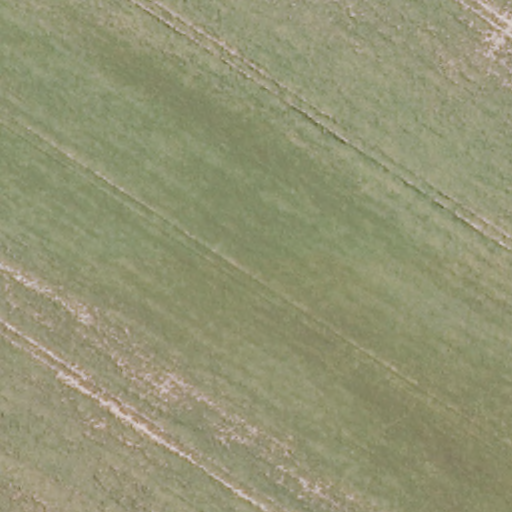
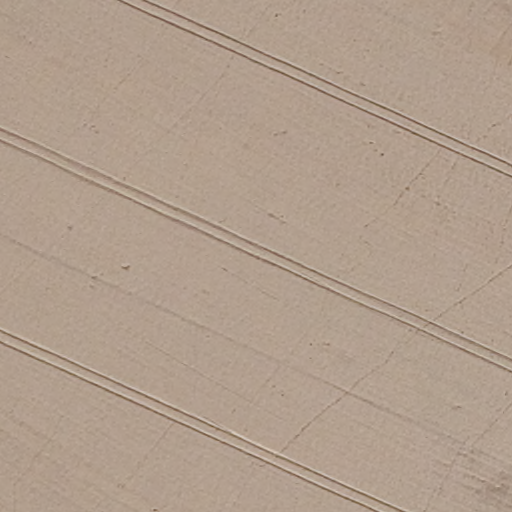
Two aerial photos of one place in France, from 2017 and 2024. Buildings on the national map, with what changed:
[]

